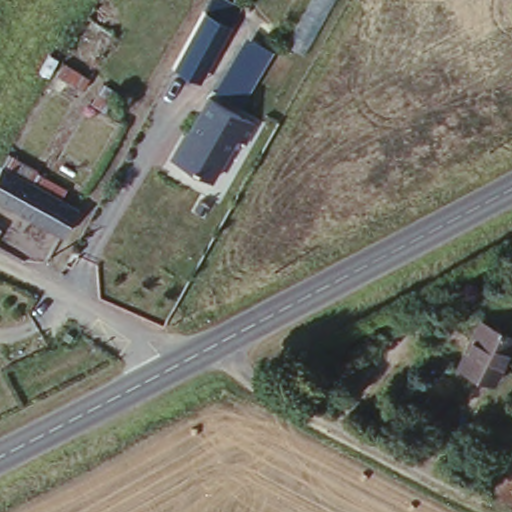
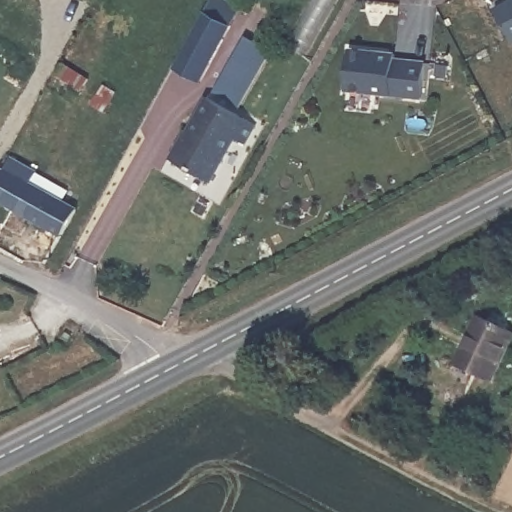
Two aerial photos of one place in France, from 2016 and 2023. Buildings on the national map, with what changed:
unchanged [(287,45),(312,0),(337,0),(307,55),(287,45)]
new [(492,8),(508,0),(512,0),(512,42),(510,43),(492,8)]
unchanged [(202,10),(229,26),(204,80),(174,66),(202,10)]
unchanged [(274,54),(248,110),(218,95),(249,41),(274,54)]
new [(419,98),(343,89),(347,50),(393,55),(392,60),(423,63),(419,98)]
unchanged [(205,98),(248,122),(240,138),(230,137),(207,179),(171,158),(205,98)]
unchanged [(59,232),(0,201),(0,164),(0,163),(75,204),(59,232)]
unchanged [(512,330),(512,348),(493,389),(452,371),(478,314),(512,330)]

